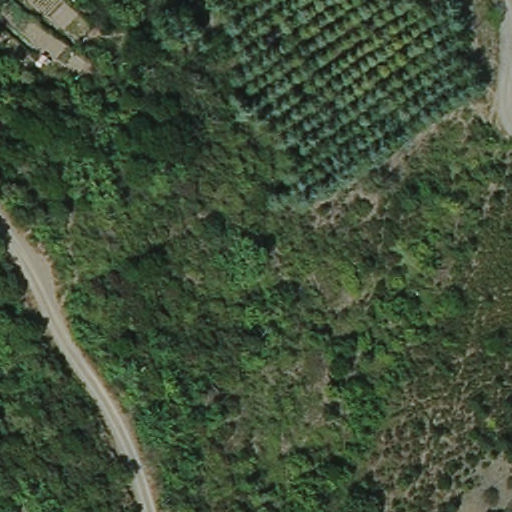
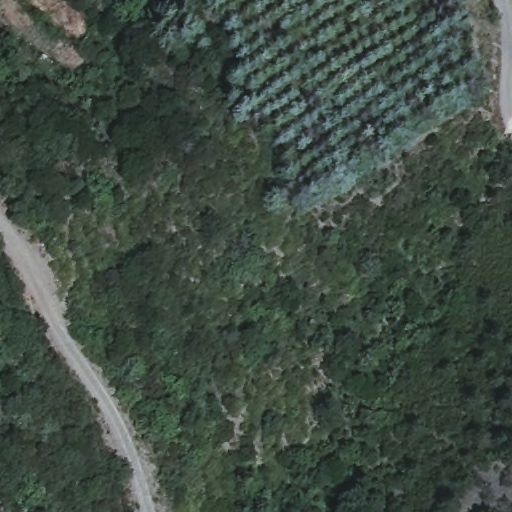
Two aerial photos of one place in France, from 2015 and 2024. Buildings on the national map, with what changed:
unchanged [(286,345),(270,358),(260,346),(276,333),(286,345)]

